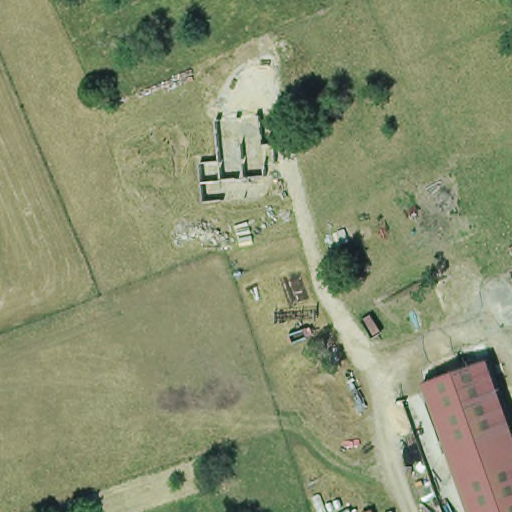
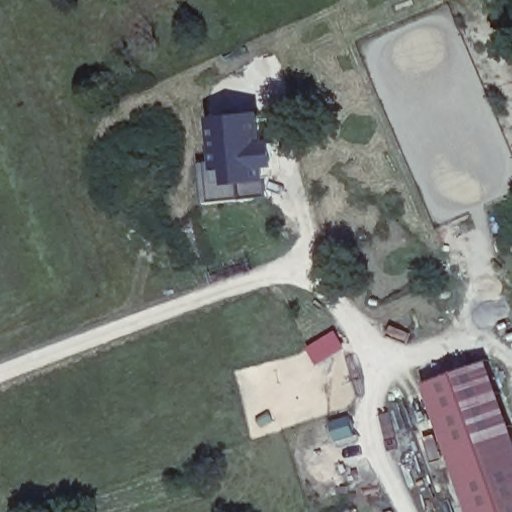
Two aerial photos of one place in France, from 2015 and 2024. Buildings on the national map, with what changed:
new [(266,111),(268,140),(279,140),(281,168),(268,169),(270,180),(270,198),(246,200),(216,203),(203,203),(200,162),(217,161),(213,116),(266,111)]
new [(335,335),(343,348),(317,364),(309,351),(335,335)]
unchanged [(423,386),(421,379),(486,357),(490,368),(512,429),(512,512),(468,512),(423,386)]

